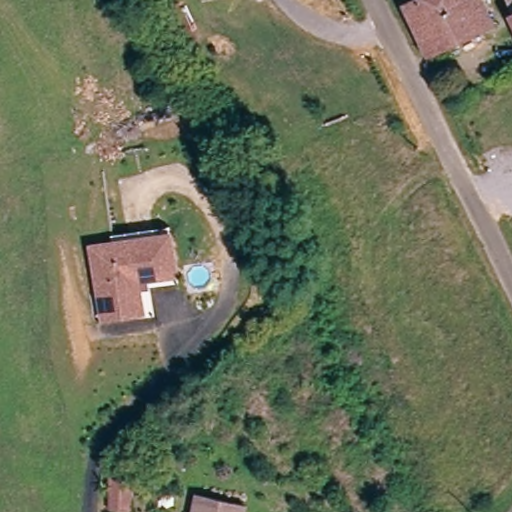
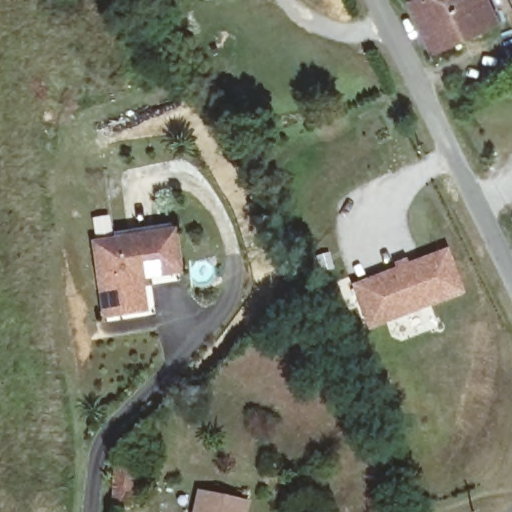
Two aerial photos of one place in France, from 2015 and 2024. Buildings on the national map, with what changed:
unchanged [(424,48),(405,0),(484,0),(492,19),(424,48)]
unchanged [(510,11),(505,0),(512,0),(512,15),(510,11)]
unchanged [(114,313),(105,314),(96,241),(160,233),(175,230),(180,271),(165,273),(141,276),(146,309),(114,313)]
new [(365,329),(349,287),(390,270),(388,264),(406,259),(408,263),(448,247),(464,295),(365,329)]
unchanged [(144,506),(122,504),(122,502),(123,464),(146,466),(144,506)]
unchanged [(208,489),(256,499),(253,512),(203,512),(208,489)]

